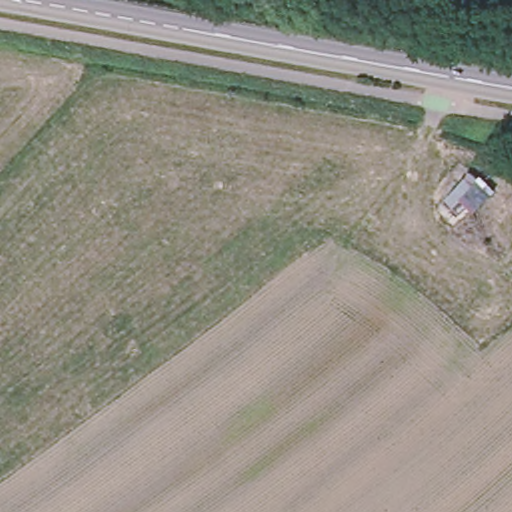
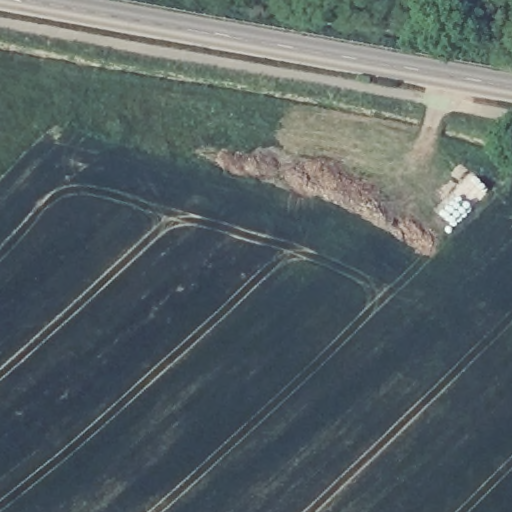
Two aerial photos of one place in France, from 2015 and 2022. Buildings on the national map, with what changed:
unchanged [(454,235),(436,220),(447,209),(441,200),(469,172),(492,194),(454,235)]

